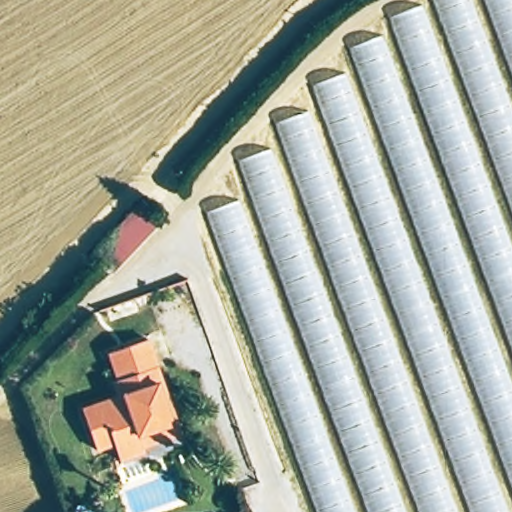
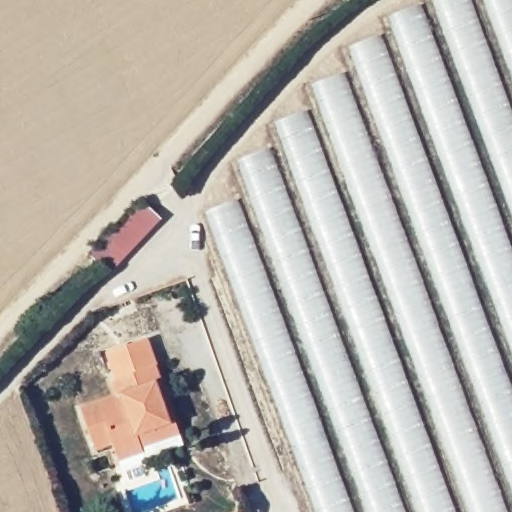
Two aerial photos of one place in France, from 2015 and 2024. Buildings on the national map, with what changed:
unchanged [(350,49),(392,18),(426,0),(512,0),(512,512),(316,512),(208,212),(350,49)]
unchanged [(165,218),(119,267),(105,254),(98,248),(144,199),(151,206),(165,218)]
unchanged [(158,369),(154,372),(175,425),(137,438),(143,453),(120,463),(114,447),(96,453),(79,409),(117,396),(110,380),(115,377),(107,356),(150,343),(158,369)]

